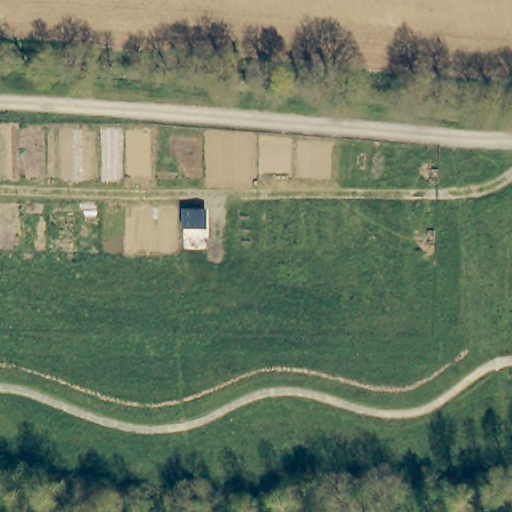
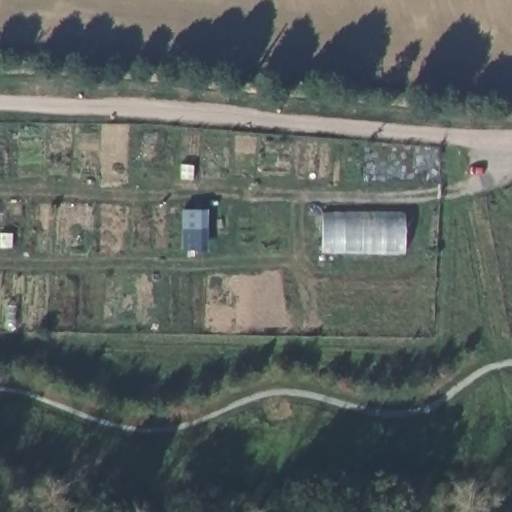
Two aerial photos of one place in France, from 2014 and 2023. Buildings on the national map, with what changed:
unchanged [(185,209),(208,209),(207,229),(184,229),(185,209)]
new [(323,213),(411,213),(411,256),(323,252),(323,213)]

